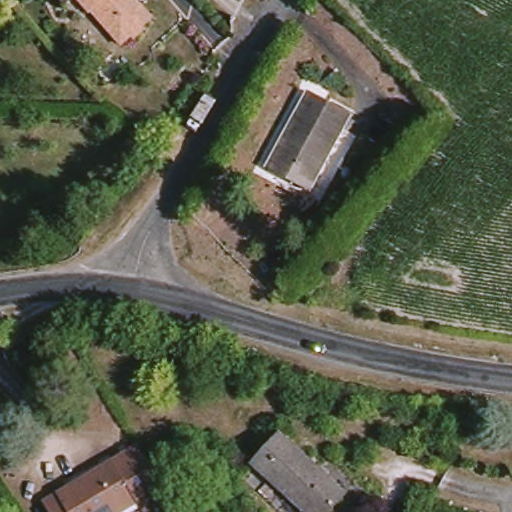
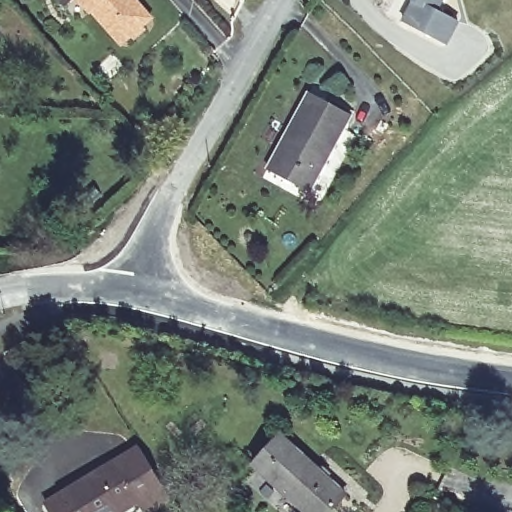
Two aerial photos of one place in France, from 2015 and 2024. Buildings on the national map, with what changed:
unchanged [(145,26),(148,30),(136,41),(133,38),(123,47),(94,16),(91,18),(79,6),(80,5),(77,2),(66,12),(54,0),(135,0),(153,18),(145,26)]
new [(457,23),(446,45),(402,22),(413,1),(411,0),(443,0),(437,12),(457,23)]
unchanged [(309,191),(268,169),(310,95),(350,117),(309,191)]
unchanged [(281,441),(344,498),(332,512),(300,512),(254,470),(281,441)]
unchanged [(165,501),(146,512),(133,512),(130,507),(122,512),(44,512),(43,510),(136,452),(165,501)]

